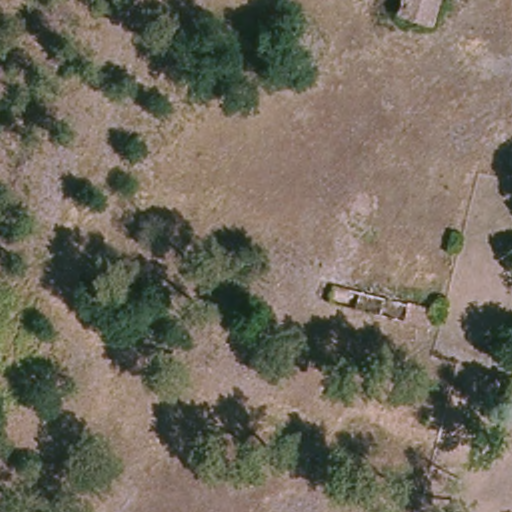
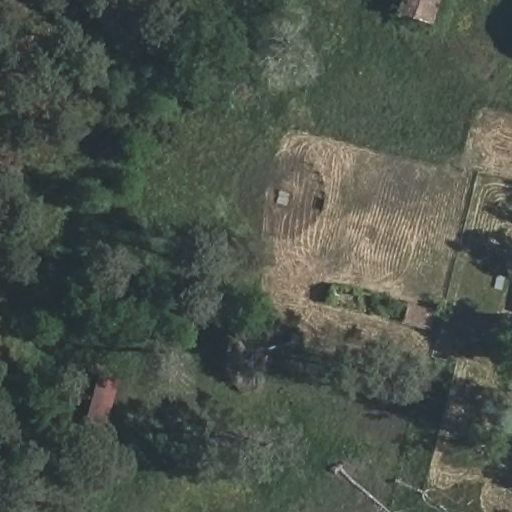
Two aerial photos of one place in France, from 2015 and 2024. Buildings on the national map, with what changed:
unchanged [(439,0),(432,25),(400,15),(405,0),(439,0)]

